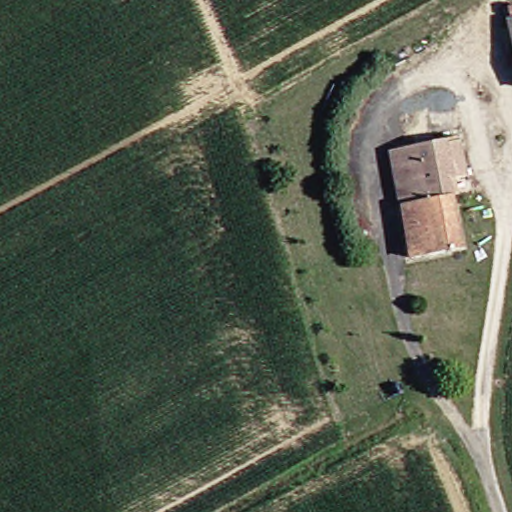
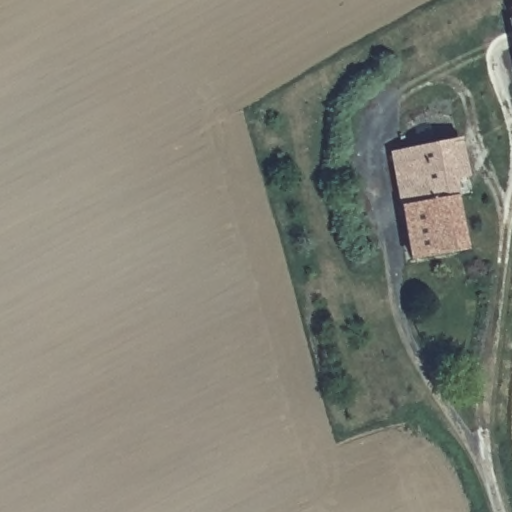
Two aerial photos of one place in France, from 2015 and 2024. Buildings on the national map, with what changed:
unchanged [(456,179),(464,249),(409,257),(401,189),(398,165),(397,151),(464,139),(471,176),(456,179)]

